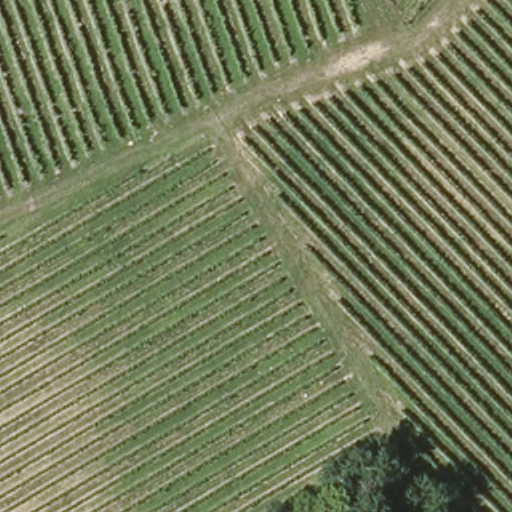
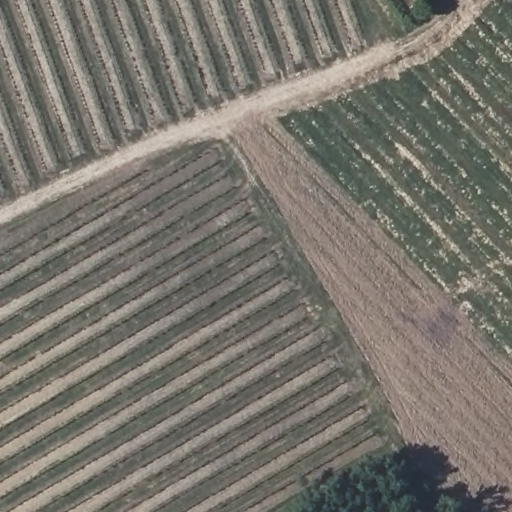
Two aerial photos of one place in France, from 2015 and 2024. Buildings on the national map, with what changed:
[]

